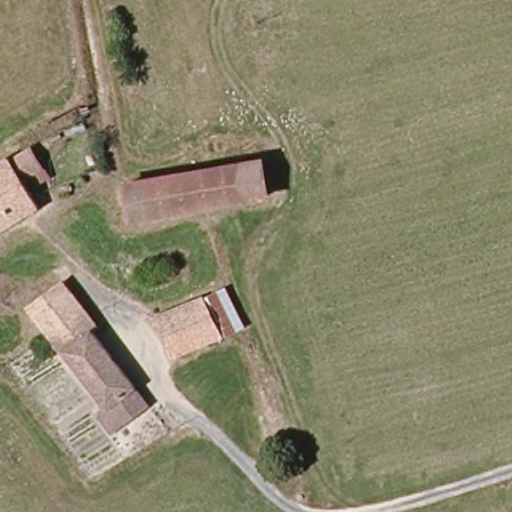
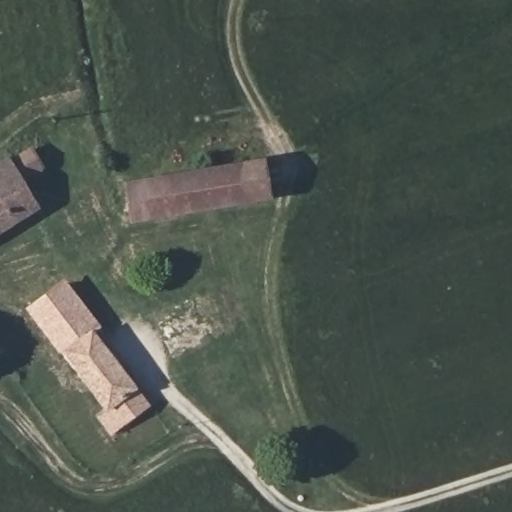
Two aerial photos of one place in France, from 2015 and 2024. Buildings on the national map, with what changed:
unchanged [(45,166),(25,177),(43,207),(0,232),(0,164),(7,159),(10,159),(32,146),(45,166)]
unchanged [(237,169),(250,166),(255,200),(209,208),(147,219),(140,184),(237,169)]
unchanged [(114,434),(100,418),(109,411),(30,309),(62,284),(96,327),(91,330),(130,379),(151,408),(124,427),(114,434)]
new [(247,329),(225,339),(205,297),(226,287),(247,329)]
demolished [(170,316),(213,294),(235,332),(196,352),(190,354),(170,316)]
new [(174,363),(152,319),(205,295),(205,297),(225,339),(174,363)]

